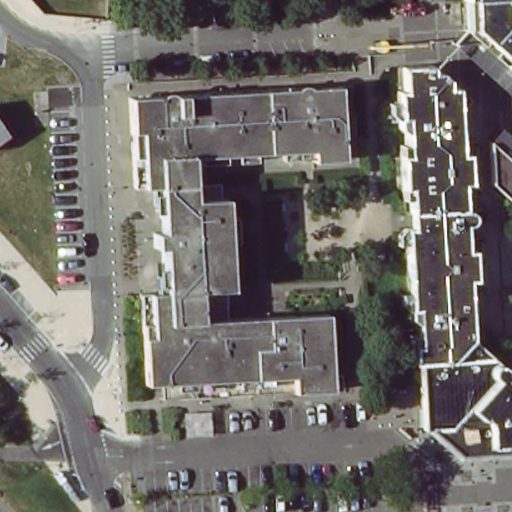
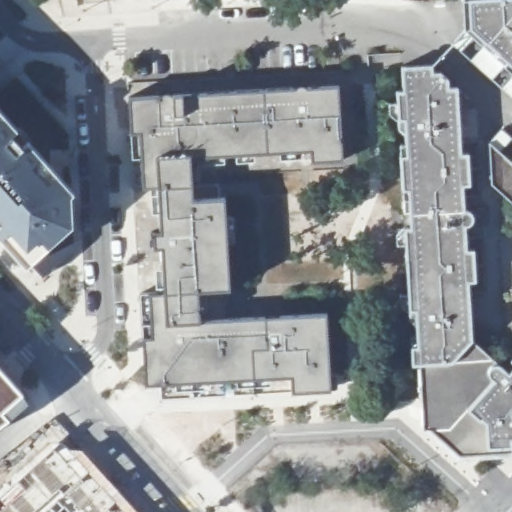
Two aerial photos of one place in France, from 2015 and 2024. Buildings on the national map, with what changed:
unchanged [(487,39),(470,24),(469,0),(512,0),(512,71),(482,44),(487,39)]
unchanged [(447,436),(424,436),(421,390),(420,371),(415,371),(412,316),(410,300),(408,251),(407,235),(400,127),(399,109),(398,98),(405,98),(404,72),(432,71),(433,80),(440,80),(450,88),(450,96),(459,96),(462,160),(469,160),(470,190),(464,190),(468,258),(474,257),(476,288),(470,288),(472,346),(510,380),(512,378),(512,449),(465,452),(447,436)]
unchanged [(228,291),(223,291),(225,320),(249,318),(326,316),(329,375),(166,384),(143,385),(142,353),(139,295),(162,294),(159,248),(152,248),(151,233),(159,232),(156,188),(133,189),(128,99),(339,87),(343,160),(311,162),(310,151),(189,159),(191,186),(218,184),(219,199),(223,198),(228,291)]
new [(1,122),(7,117),(50,162),(41,169),(51,180),(59,173),(76,191),(78,232),(53,256),(50,253),(29,272),(3,244),(0,248),(0,121),(1,122)]
unchanged [(487,148),(512,169),(512,209),(490,189),(487,148)]
new [(24,398),(5,415),(12,424),(0,433),(0,371),(24,398)]
new [(64,439),(82,455),(85,452),(139,512),(64,512),(56,504),(46,512),(17,512),(1,496),(32,464),(64,439)]

